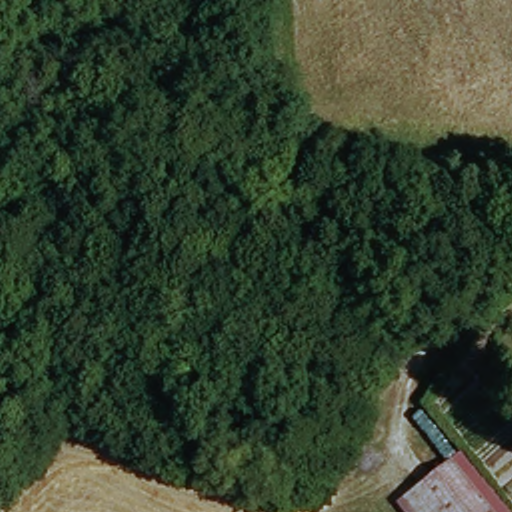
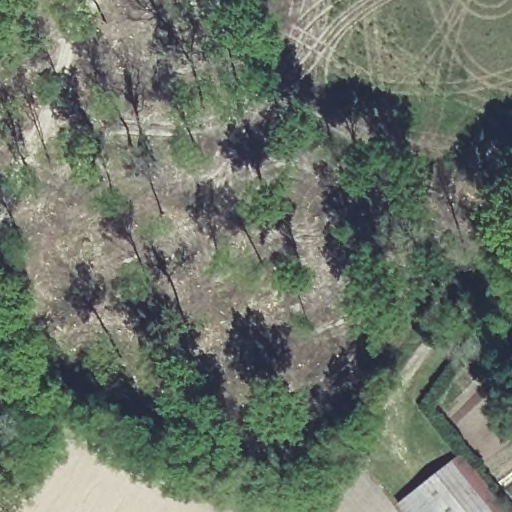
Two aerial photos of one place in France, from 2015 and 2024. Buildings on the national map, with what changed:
unchanged [(447,467),(453,463),(490,512),(407,512),(401,503),(447,467)]

